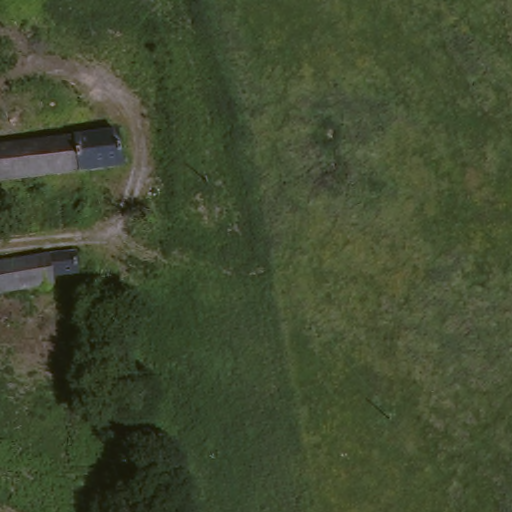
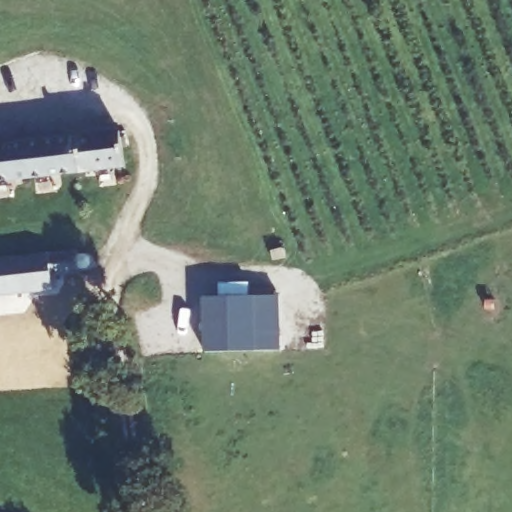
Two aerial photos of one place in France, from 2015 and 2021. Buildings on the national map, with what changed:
unchanged [(121,162),(0,178),(0,142),(117,129),(121,162)]
unchanged [(83,245),(90,245),(99,252),(88,266),(84,271),(0,285),(0,257),(82,242),(83,245)]
new [(202,297),(277,298),(276,353),(201,352),(202,297)]

